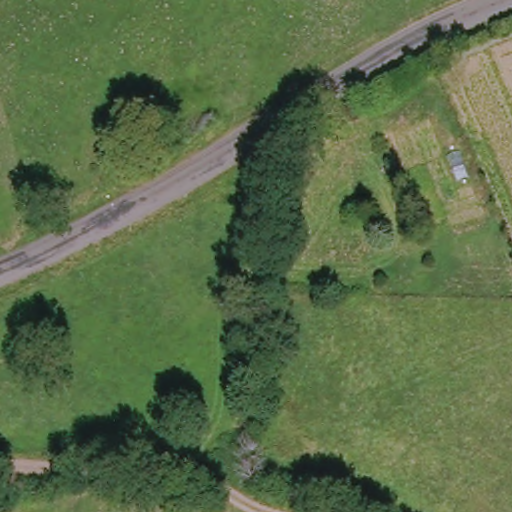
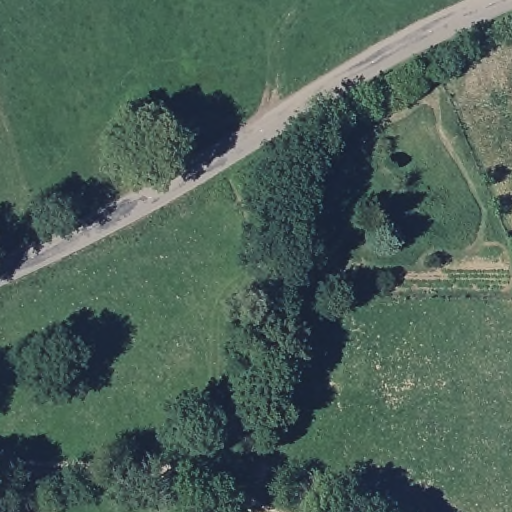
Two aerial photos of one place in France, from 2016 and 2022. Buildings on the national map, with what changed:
[]

